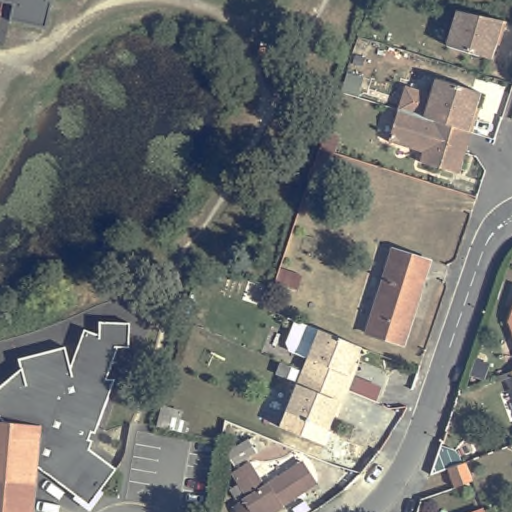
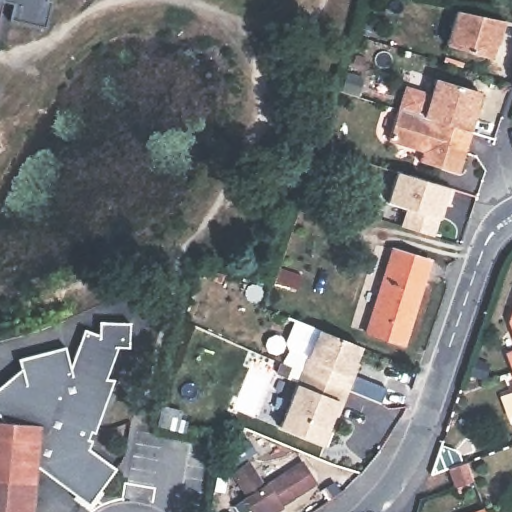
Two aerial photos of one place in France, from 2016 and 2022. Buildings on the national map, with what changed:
unchanged [(3,0),(0,11),(0,0),(3,0)]
unchanged [(45,27),(10,20),(15,1),(11,0),(46,0),(51,1),(45,27)]
unchanged [(490,59),(446,46),(457,11),(486,17),(505,22),(500,39),(498,46),(495,45),(490,59)]
unchanged [(271,48),(268,60),(257,56),(259,46),(271,48)]
unchanged [(476,116),(471,132),(424,117),(436,79),(480,93),(475,108),(478,109),(476,116)]
unchanged [(458,173),(419,161),(423,150),(416,148),(416,150),(387,140),(398,109),(424,117),(471,132),(458,173)]
new [(434,238),(399,226),(405,209),(386,203),(395,172),(449,188),(434,238)]
unchanged [(408,345),(370,332),(396,249),(435,261),(408,345)]
unchanged [(512,330),(508,321),(512,309),(512,330)]
unchanged [(332,416),(326,431),(284,414),(301,372),(307,357),(289,350),(286,342),(295,321),(318,330),(344,341),(349,343),(360,347),(354,363),(358,364),(353,376),(347,391),(341,406),(336,417),(332,416)]
unchanged [(2,422),(0,419),(0,385),(20,369),(18,359),(35,354),(65,347),(69,367),(81,337),(84,329),(98,335),(99,322),(129,323),(128,348),(118,347),(106,379),(114,379),(95,433),(91,432),(89,439),(92,440),(89,449),(116,469),(97,494),(88,506),(78,498),(55,481),(35,466),(31,512),(0,512),(0,422),(2,422)]
unchanged [(156,426),(161,406),(182,412),(180,421),(187,423),(185,433),(156,426)]
unchanged [(454,487),(447,468),(438,471),(429,475),(439,445),(452,449),(456,454),(460,464),(465,462),(471,481),(454,487)]
unchanged [(237,511),(252,502),(236,477),(253,467),(269,491),(308,466),(322,488),(286,512),(238,512),(237,511)]
unchanged [(485,512),(475,512),(483,509),(485,512)]

